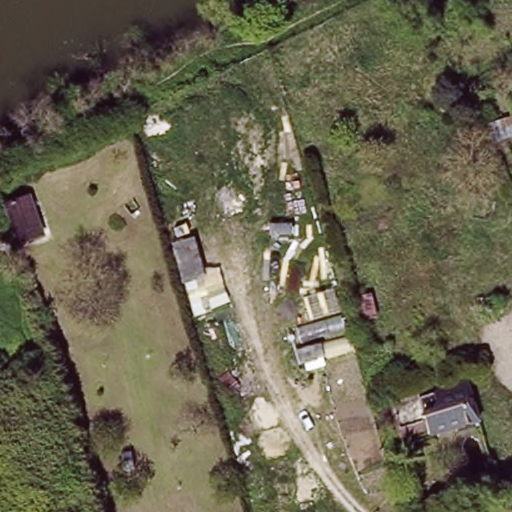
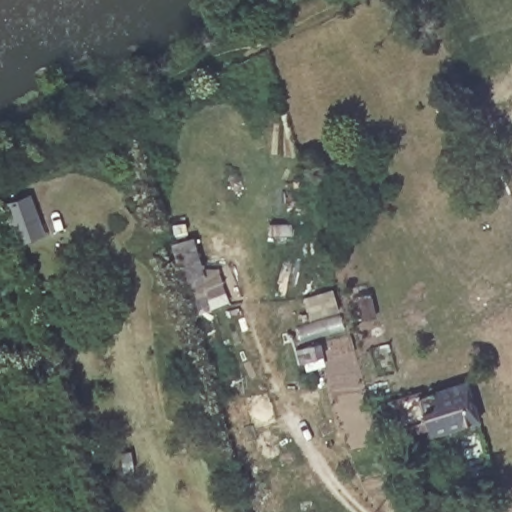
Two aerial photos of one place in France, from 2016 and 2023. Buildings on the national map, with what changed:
unchanged [(33,201),(44,240),(18,248),(7,209),(33,201)]
unchanged [(191,241),(201,277),(181,283),(171,247),(191,241)]
unchanged [(421,417),(416,399),(466,384),(477,421),(438,432),(427,436),(421,417)]

